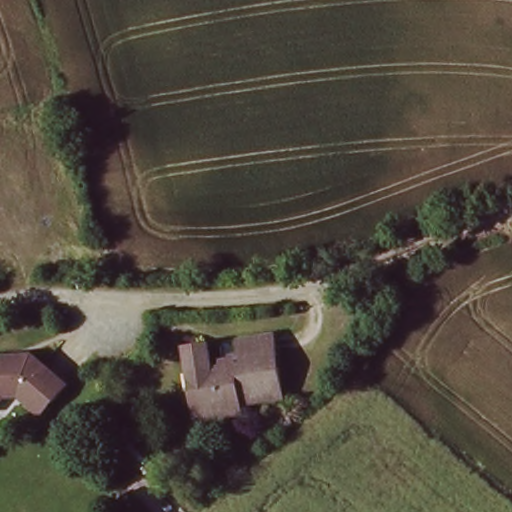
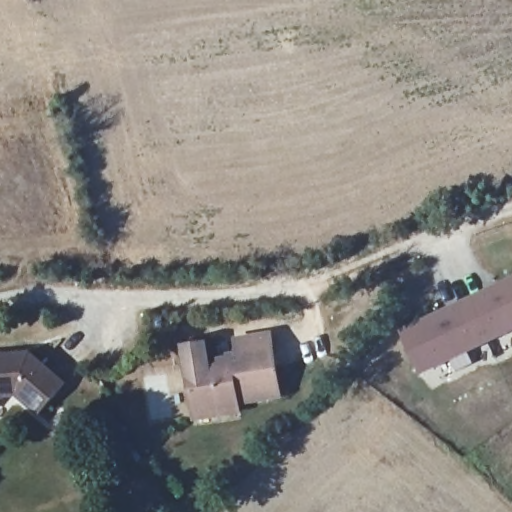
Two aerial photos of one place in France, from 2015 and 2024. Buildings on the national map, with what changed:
new [(512,332),(427,372),(406,330),(512,280),(512,332)]
unchanged [(193,424),(191,415),(185,374),(191,371),(190,364),(233,355),(231,340),(265,334),(267,348),(274,397),(236,405),(237,413),(193,424)]
unchanged [(31,345),(72,377),(50,406),(26,390),(15,391),(0,410),(0,353),(31,345)]

